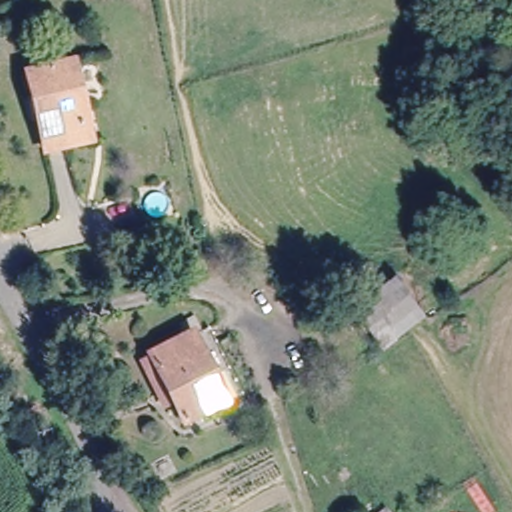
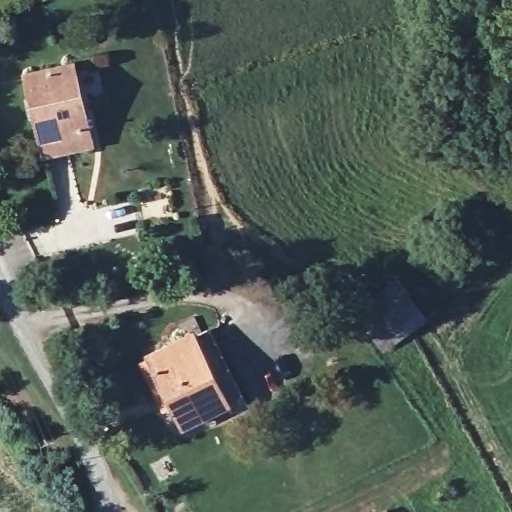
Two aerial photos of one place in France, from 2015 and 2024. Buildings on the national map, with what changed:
unchanged [(44,130),(33,72),(62,66),(77,64),(87,121),(91,134),(87,135),(47,144),(44,130)]
unchanged [(400,276),(429,321),(383,351),(354,307),(400,276)]
unchanged [(195,332),(209,364),(222,392),(227,401),(179,420),(177,416),(166,387),(151,351),(157,349),(195,332)]
unchanged [(350,512),(372,491),(390,512),(350,512)]

